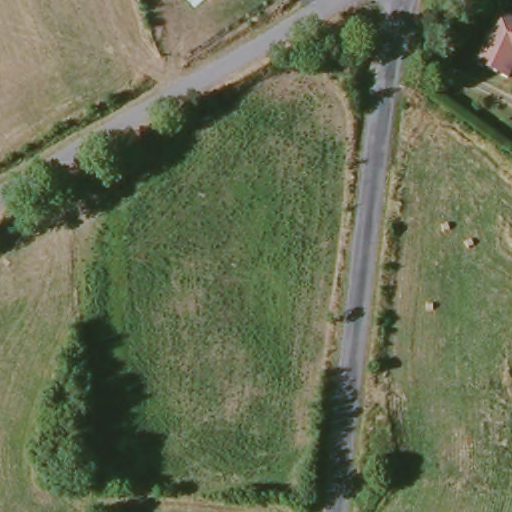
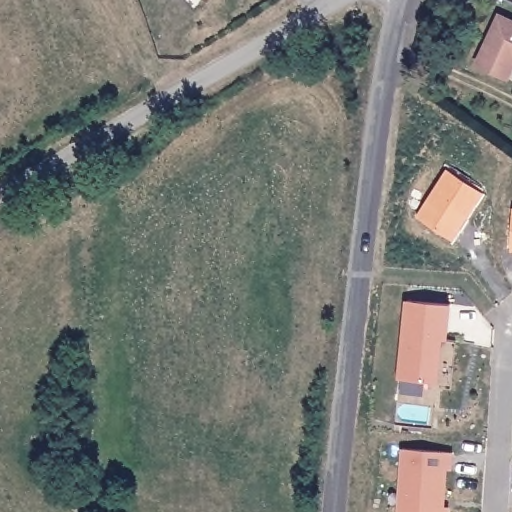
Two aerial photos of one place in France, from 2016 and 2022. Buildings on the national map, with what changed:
unchanged [(506,73),(476,58),(497,12),(512,19),(512,61),(506,73)]
new [(446,165),(481,186),(452,235),(417,213),(446,165)]
new [(402,375),(410,297),(454,301),(450,337),(442,336),(441,350),(443,354),(440,379),(402,375)]
new [(401,512),(405,446),(455,450),(454,468),(449,467),(446,505),(446,512),(401,512)]
new [(445,512),(446,505),(451,506),(450,512),(445,512)]

